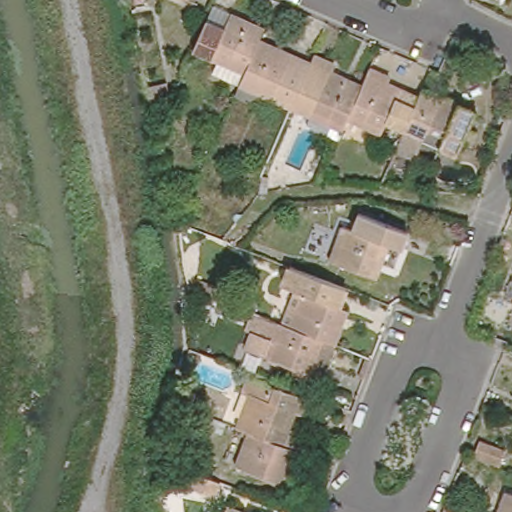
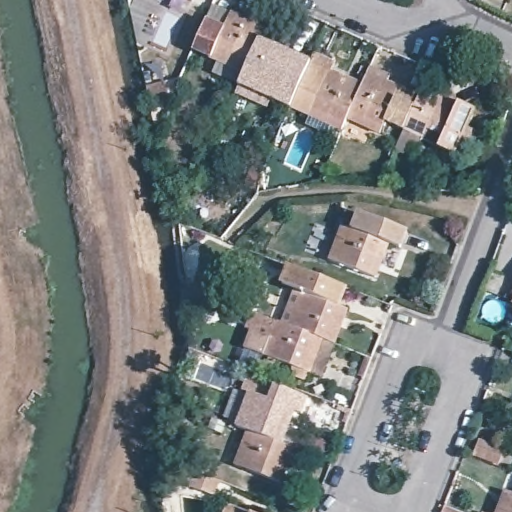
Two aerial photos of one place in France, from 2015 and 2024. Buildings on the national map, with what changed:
unchanged [(263,27),(259,39),(243,74),(210,59),(193,51),(206,20),(211,10),(228,17),(230,12),(263,27)]
unchanged [(235,96),(238,85),(243,74),(259,39),(309,61),(290,107),(258,94),(253,104),(235,96)]
unchanged [(336,62),(332,71),(362,84),(346,120),(342,131),(290,107),(309,61),(314,52),(336,62)]
unchanged [(389,77),(387,82),(420,96),(403,134),(399,142),(346,120),(362,84),(369,68),(389,77)]
unchanged [(187,69),(200,75),(192,92),(179,86),(187,69)]
unchanged [(165,82),(169,101),(150,106),(146,87),(165,82)]
unchanged [(477,165),(454,154),(453,156),(446,170),(413,155),(419,141),(403,134),(420,96),(423,87),(473,110),(466,126),(490,136),(477,165)]
unchanged [(356,225),(364,209),(435,236),(428,252),(395,240),(382,274),(335,254),(348,221),(356,225)]
unchanged [(284,281),(280,279),(288,261),(349,285),(342,303),(349,306),(337,340),(325,335),(277,316),(271,314),(284,281)]
unchanged [(37,309),(30,307),(30,302),(37,302),(37,309)]
unchanged [(289,371),(292,362),(264,351),(244,343),(251,327),(261,331),(268,312),(271,314),(277,316),(325,335),(312,370),(310,369),(306,378),(289,371)]
unchanged [(229,412),(239,417),(254,380),(306,400),(300,415),(296,413),(283,447),(247,432),(235,427),(225,425),(229,412)]
unchanged [(283,447),(296,451),(283,483),(234,467),(247,432),(283,447)]
unchanged [(195,472),(221,483),(215,497),(189,487),(195,472)]
unchanged [(505,491),(512,494),(512,512),(497,512),(505,491)]
unchanged [(232,506),(249,512),(229,512),(232,506)]

